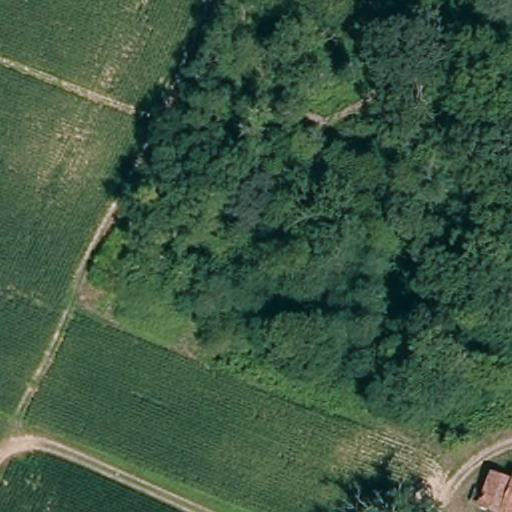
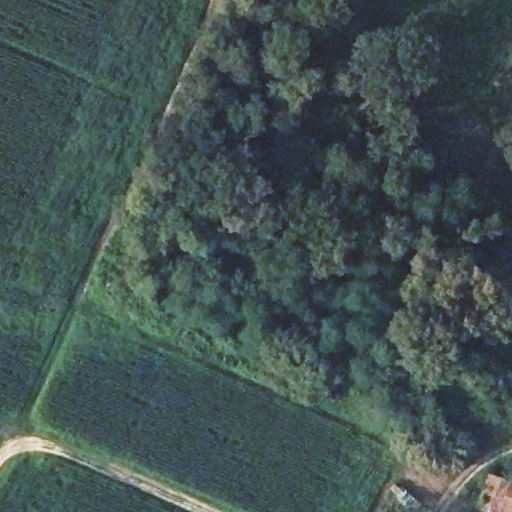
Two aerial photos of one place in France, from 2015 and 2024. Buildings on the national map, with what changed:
unchanged [(478,489),(485,470),(507,478),(509,473),(512,475),(512,512),(487,512),(460,501),(467,484),(478,489)]

